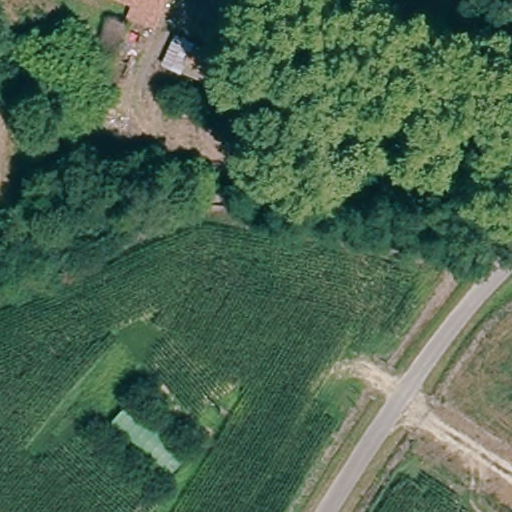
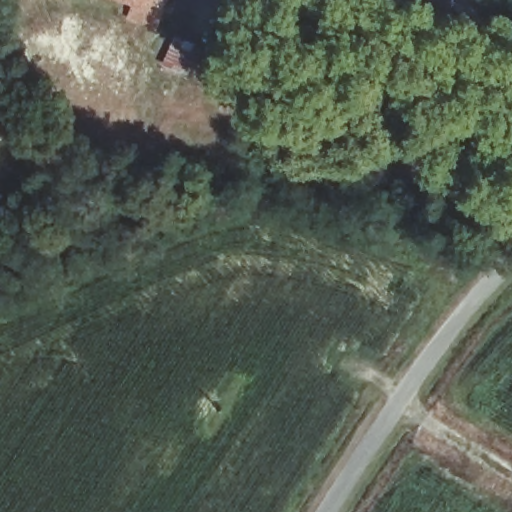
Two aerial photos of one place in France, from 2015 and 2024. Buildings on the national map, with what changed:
unchanged [(138,1),(134,0),(165,0),(156,28),(134,21),(138,1)]
unchanged [(97,70),(112,24),(127,28),(113,74),(97,70)]
demolished [(186,452),(157,480),(98,427),(127,399),(186,452)]

